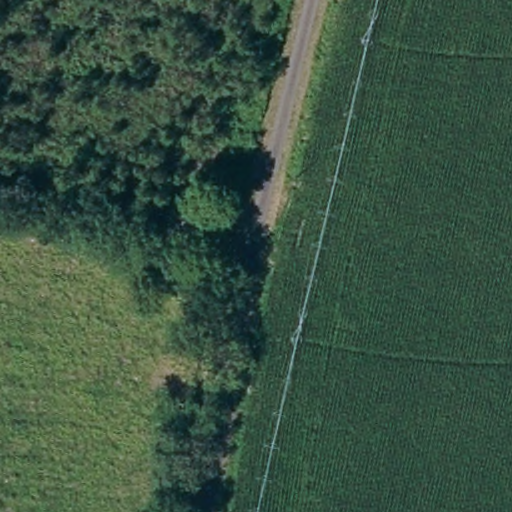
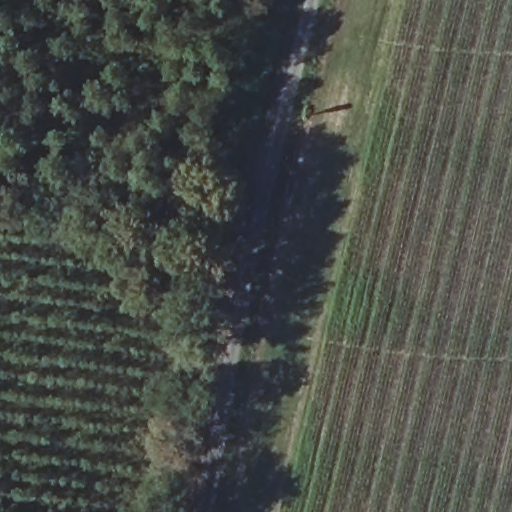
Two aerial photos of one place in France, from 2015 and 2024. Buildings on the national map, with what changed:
unchanged [(146,224),(151,205),(208,219),(206,238),(146,224)]

